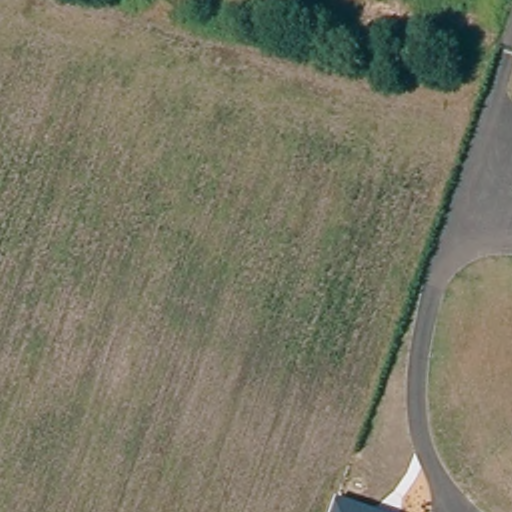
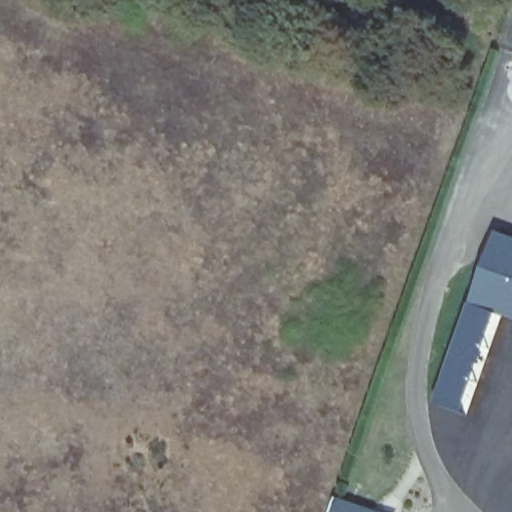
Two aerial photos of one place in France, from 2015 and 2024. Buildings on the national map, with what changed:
new [(512,238),(512,320),(500,315),(472,306),(498,233),(512,238)]
new [(445,359),(453,361),(472,306),(500,315),(466,415),(431,401),(445,359)]
unchanged [(372,512),(334,512),(338,501),(372,512)]

